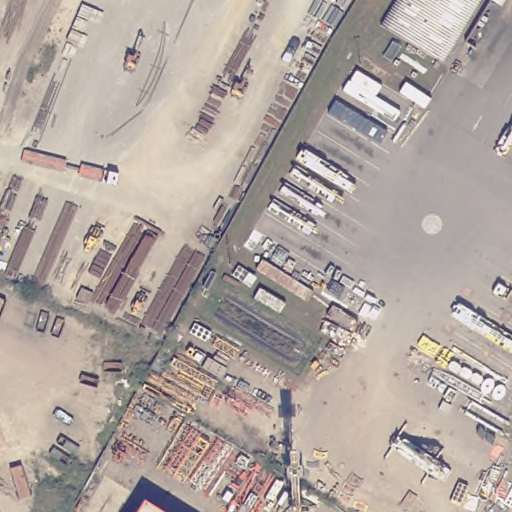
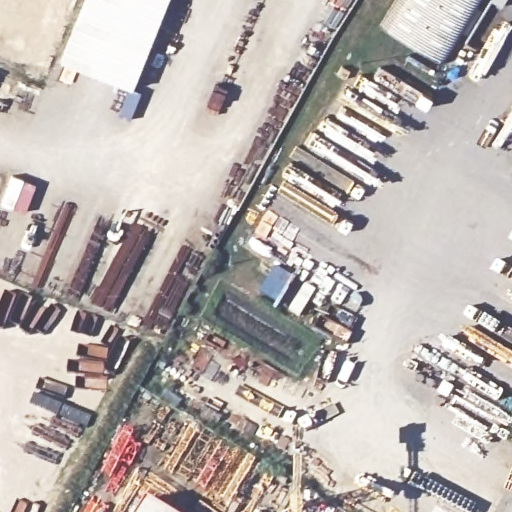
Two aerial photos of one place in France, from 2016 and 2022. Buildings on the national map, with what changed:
new [(168,0),(133,88),(59,60),(84,0),(168,0)]
unchanged [(394,2),(395,0),(481,0),(442,63),(380,25),(394,2)]
unchanged [(165,512),(137,512),(145,499),(165,512)]

